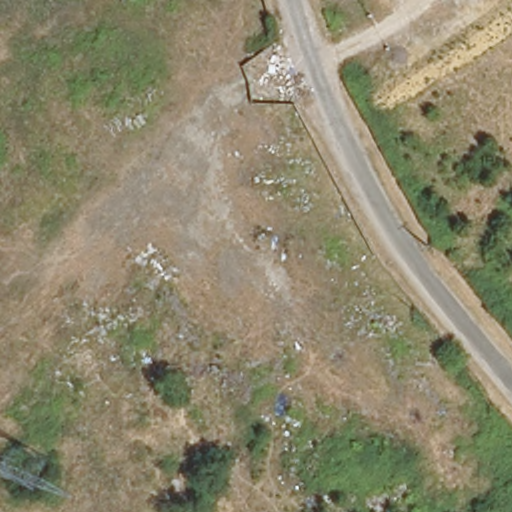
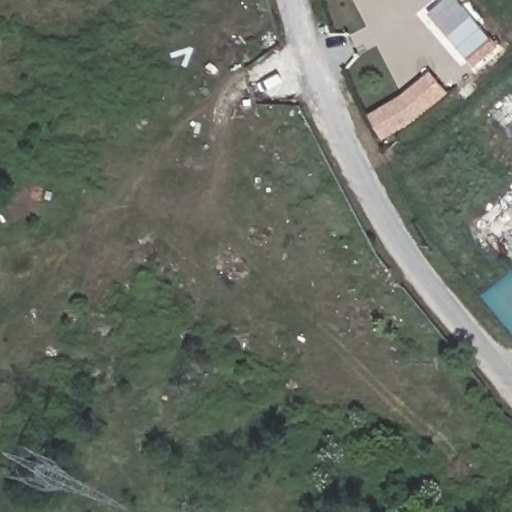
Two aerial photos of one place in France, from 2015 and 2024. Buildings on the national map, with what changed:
new [(431,15),(449,0),(461,0),(500,47),(476,68),(431,15)]
new [(431,72),(450,92),(385,143),(366,120),(431,72)]

